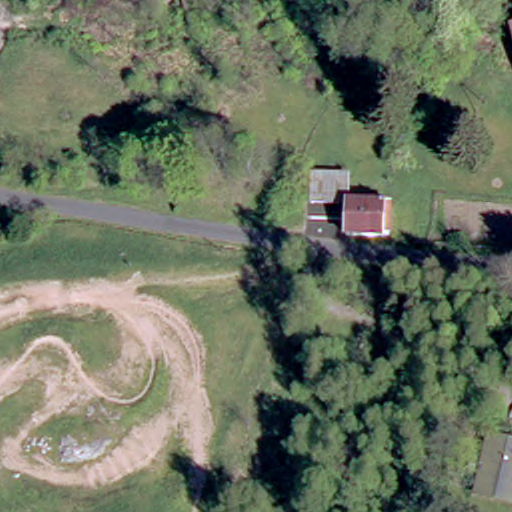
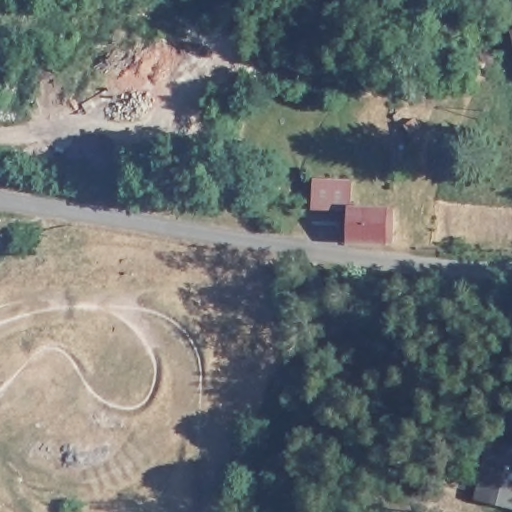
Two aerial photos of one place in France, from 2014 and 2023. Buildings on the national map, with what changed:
unchanged [(359,247),(360,232),(353,231),(354,215),(326,214),(327,185),(362,187),(361,214),(402,215),(402,248),(359,247)]
unchanged [(487,487),(477,483),(495,439),(505,443),(512,446),(512,498),(487,487)]

